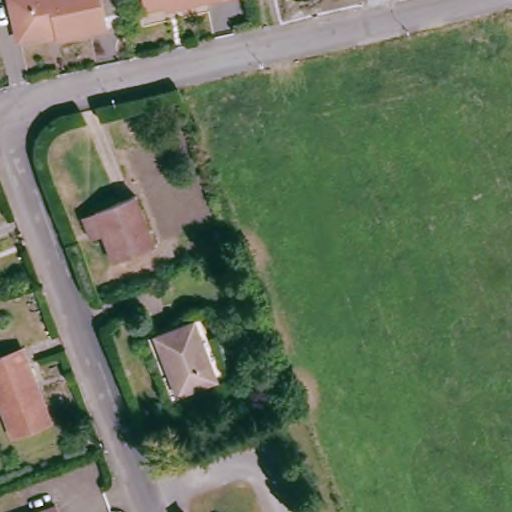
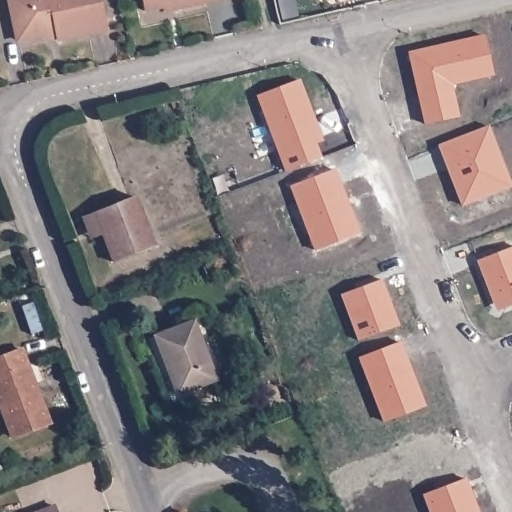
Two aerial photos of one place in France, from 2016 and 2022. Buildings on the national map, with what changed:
unchanged [(20,21),(15,0),(109,0),(116,25),(64,37),(62,29),(32,35),(23,36),(20,21)]
unchanged [(162,9),(146,12),(143,0),(223,0),(223,2),(175,14),(164,16),(162,9)]
unchanged [(223,0),(229,0),(223,2),(223,0)]
new [(407,52),(482,35),(490,73),(448,83),(455,116),(422,124),(407,52)]
new [(255,95),(295,80),(319,141),(312,144),(317,158),(283,171),(255,95)]
new [(485,125),(508,186),(460,205),(451,183),(442,161),(437,144),(485,125)]
new [(356,234),(313,250),(288,186),(331,169),(356,234)]
unchanged [(135,194),(153,243),(112,259),(93,209),(135,194)]
new [(512,245),(512,303),(503,307),(492,302),(475,260),(512,245)]
new [(356,341),(338,295),(378,280),(397,326),(356,341)]
unchanged [(197,321),(219,380),(177,395),(155,338),(197,321)]
new [(422,407),(382,422),(357,357),(397,342),(422,407)]
unchanged [(53,423),(9,439),(0,415),(0,357),(25,347),(53,423)]
new [(463,479),(476,512),(429,512),(422,495),(463,479)]
unchanged [(64,512),(37,512),(60,503),(64,512)]

